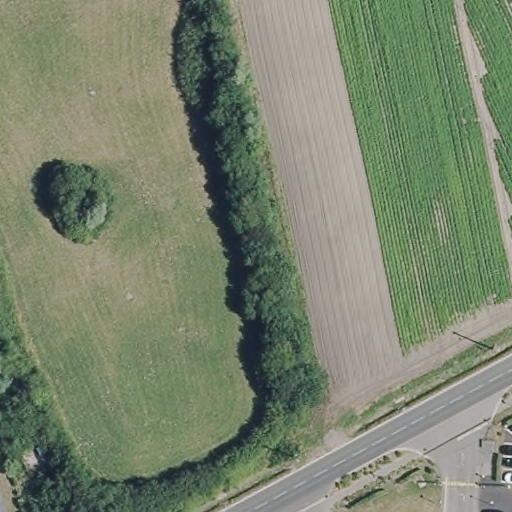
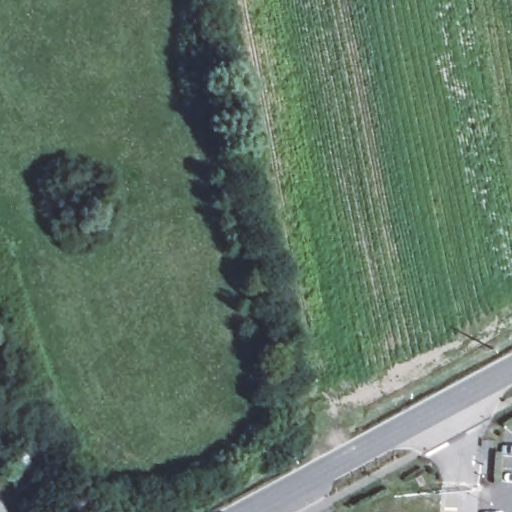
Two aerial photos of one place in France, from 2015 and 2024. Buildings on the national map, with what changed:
[]

